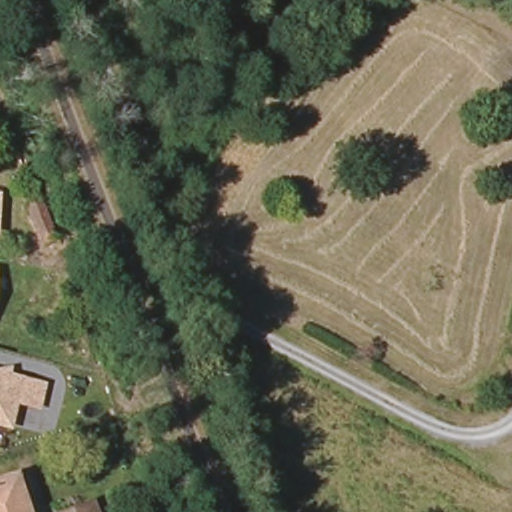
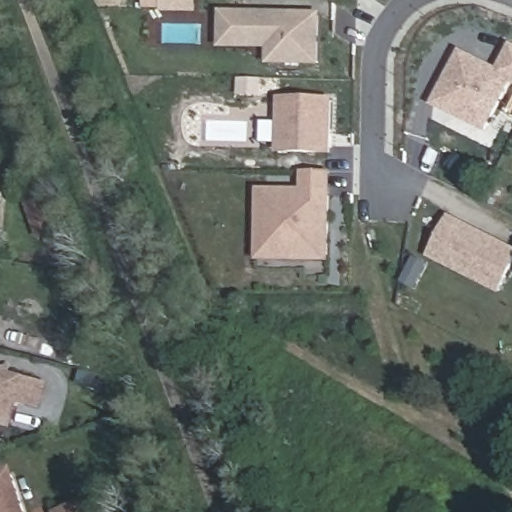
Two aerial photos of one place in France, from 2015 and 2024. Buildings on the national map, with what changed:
new [(221,33),(221,15),(318,16),(317,65),(269,64),(269,48),(249,47),(220,47),(221,33)]
new [(485,130),(434,105),(460,54),(498,73),(510,48),(512,48),(512,82),(509,80),(485,130)]
new [(331,102),(330,154),(279,153),(280,101),(331,102)]
new [(304,173),(329,173),(329,194),(304,193),(304,173)]
unchanged [(53,233),(38,238),(21,189),(36,185),(53,233)]
new [(259,243),(260,193),(329,194),(328,261),(280,261),(259,261),(259,243)]
new [(475,231),(485,236),(512,249),(512,258),(497,290),(429,255),(448,217),(475,231)]
unchanged [(0,425),(0,366),(12,364),(10,373),(24,376),(47,382),(41,409),(17,404),(11,428),(0,425)]
unchanged [(21,512),(0,512),(0,479),(10,476),(21,512)]
unchanged [(88,502),(93,512),(63,512),(88,502)]

